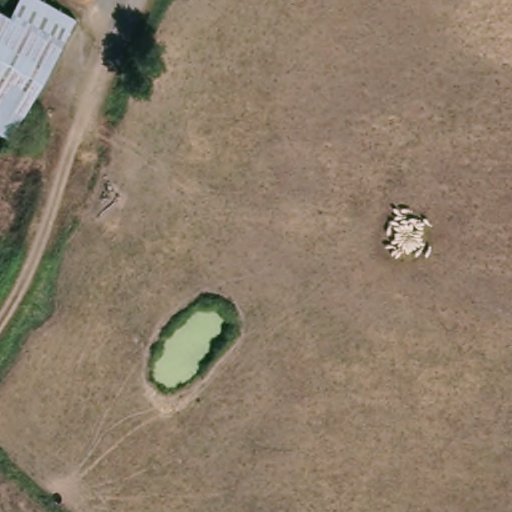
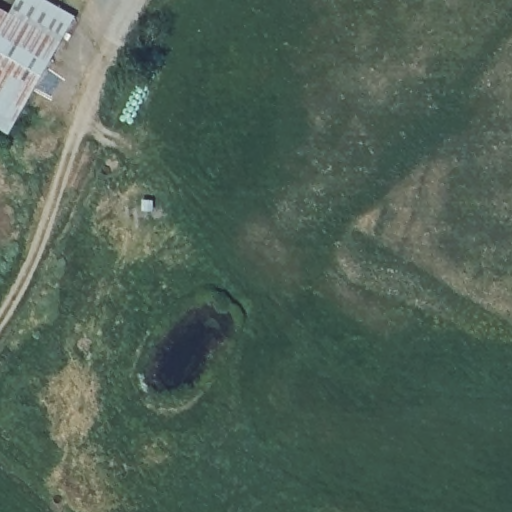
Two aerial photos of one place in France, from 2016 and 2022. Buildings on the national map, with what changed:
unchanged [(58,47),(60,49),(12,136),(0,130),(0,3),(2,0),(39,0),(24,29),(58,47)]
unchanged [(58,47),(24,29),(39,0),(44,0),(73,18),(58,47)]
unchanged [(84,0),(86,0),(85,1),(84,0)]

